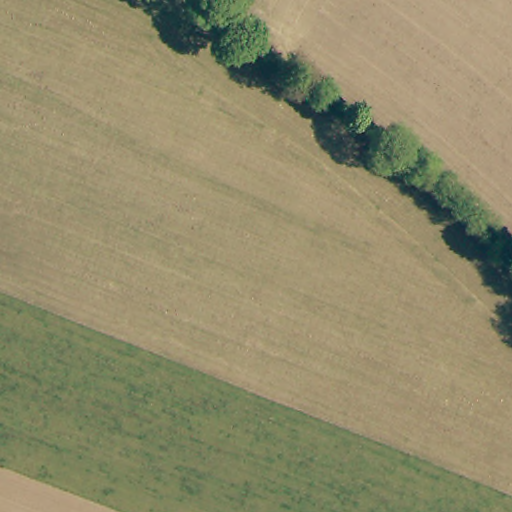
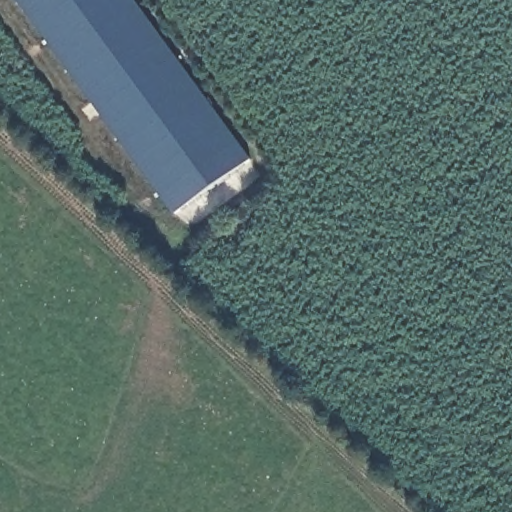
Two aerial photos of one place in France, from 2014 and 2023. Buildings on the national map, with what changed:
new [(18,0),(135,0),(249,157),(173,213),(18,0)]

